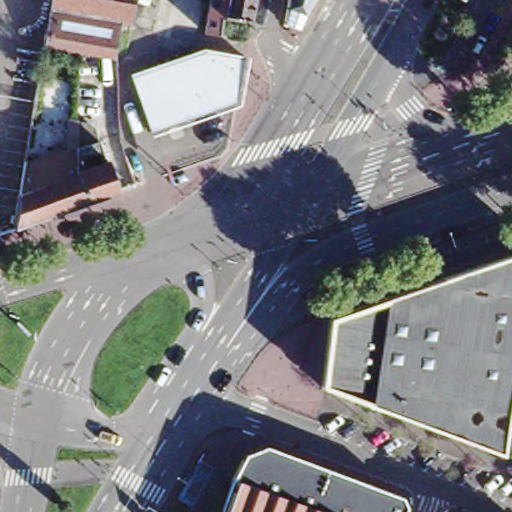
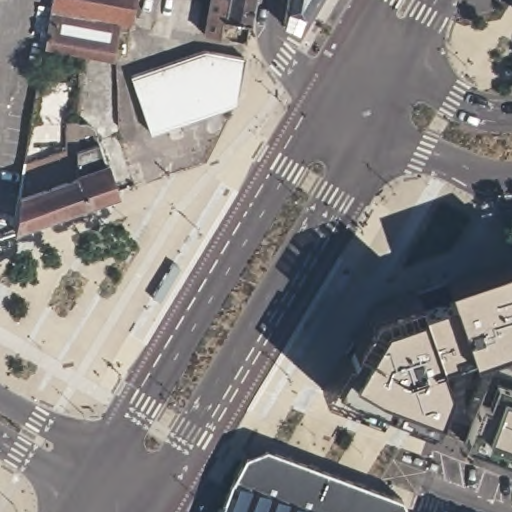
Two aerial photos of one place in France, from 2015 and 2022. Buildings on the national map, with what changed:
unchanged [(130,26),(120,25),(113,59),(43,46),(50,0),(134,0),(130,26)]
unchanged [(217,36),(202,33),(209,0),(254,0),(253,2),(250,24),(220,18),(217,36)]
unchanged [(282,26),(286,0),(314,0),(295,31),(282,26)]
unchanged [(240,110),(155,139),(135,82),(208,61),(248,64),(240,110)]
unchanged [(31,119),(37,120),(34,135),(28,134),(31,119)]
unchanged [(90,205),(80,173),(80,153),(81,130),(90,126),(98,129),(108,162),(110,161),(120,194),(90,205)]
unchanged [(27,173),(30,150),(42,151),(40,167),(80,153),(80,173),(90,205),(53,218),(17,231),(27,173)]
new [(472,352),(468,342),(451,350),(452,356),(439,361),(447,380),(438,406),(433,419),(430,428),(405,418),(377,410),(321,389),(345,351),(350,355),(355,337),(373,306),(418,293),(447,278),(512,255),(512,338),(472,352)]
demolished [(505,435),(500,455),(322,388),(330,319),(357,309),(512,256),(512,437),(505,435)]
new [(465,442),(480,401),(487,404),(497,380),(512,387),(512,459),(465,442)]
unchanged [(403,508),(402,512),(312,512),(229,482),(230,479),(242,456),(262,448),(400,498),(403,508)]
unchanged [(312,512),(218,512),(229,482),(312,512)]

